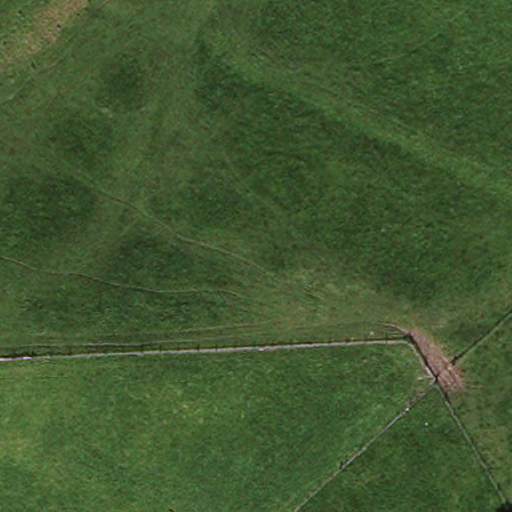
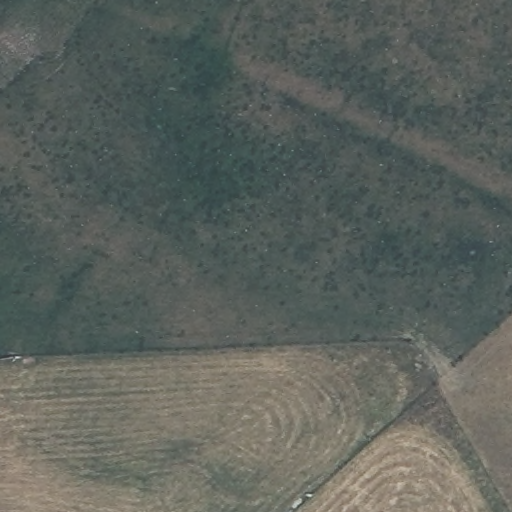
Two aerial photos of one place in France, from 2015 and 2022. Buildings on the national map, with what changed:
[]

